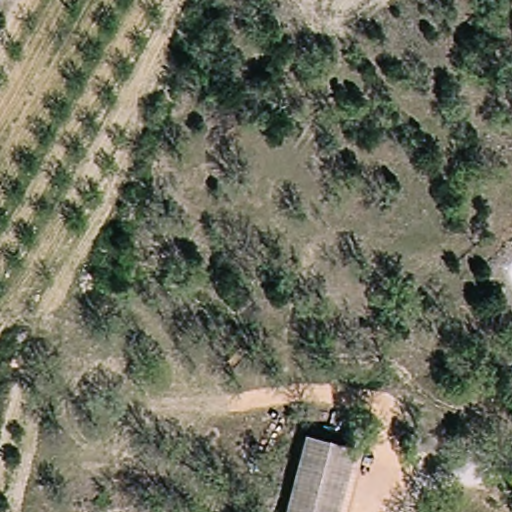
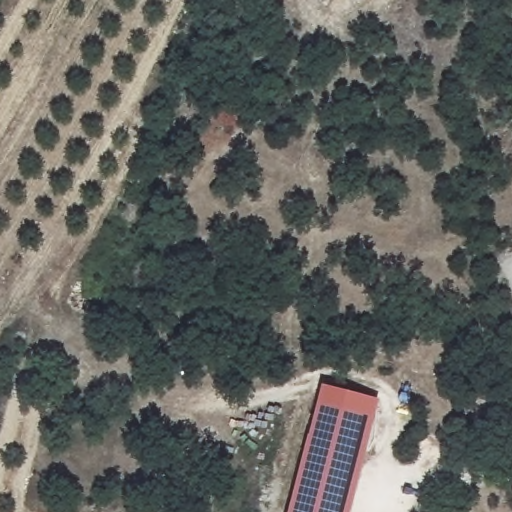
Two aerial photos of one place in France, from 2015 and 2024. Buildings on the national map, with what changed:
new [(320,387),(369,398),(356,450),(307,437),(320,387)]
unchanged [(307,437),(356,450),(341,512),(292,512),(307,437)]

